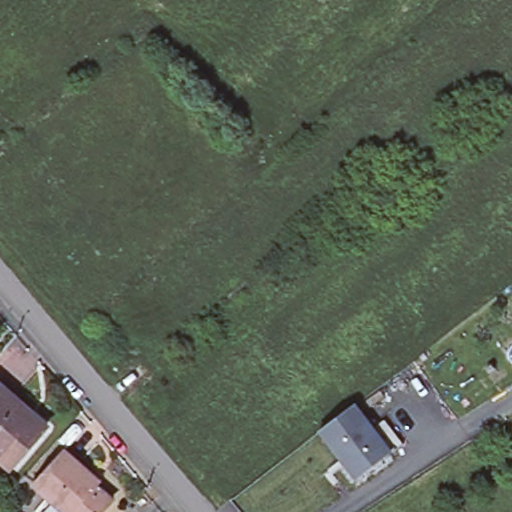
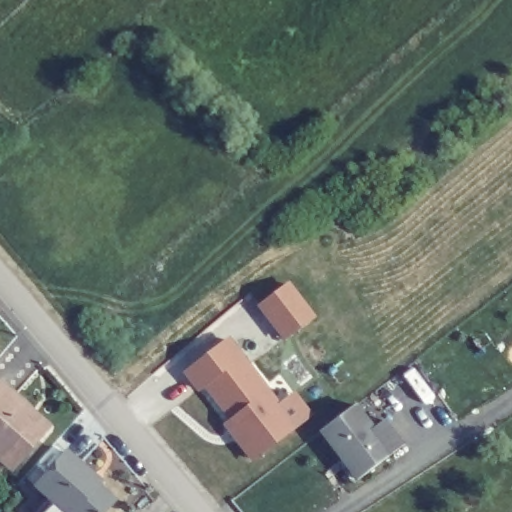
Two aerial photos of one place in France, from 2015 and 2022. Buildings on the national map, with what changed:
new [(316,317),(284,342),(255,306),(288,280),(316,317)]
new [(280,402),(295,391),(314,416),(252,462),(223,425),(229,421),(204,388),(198,393),(181,373),(229,336),(280,402)]
unchanged [(22,401),(51,426),(10,472),(0,464),(0,382),(22,401)]
unchanged [(342,458),(321,432),(355,406),(374,430),(386,421),(389,425),(404,445),(392,454),(358,480),(342,458)]
unchanged [(39,484),(69,450),(96,474),(92,478),(116,500),(105,512),(46,512),(57,500),(39,484)]

